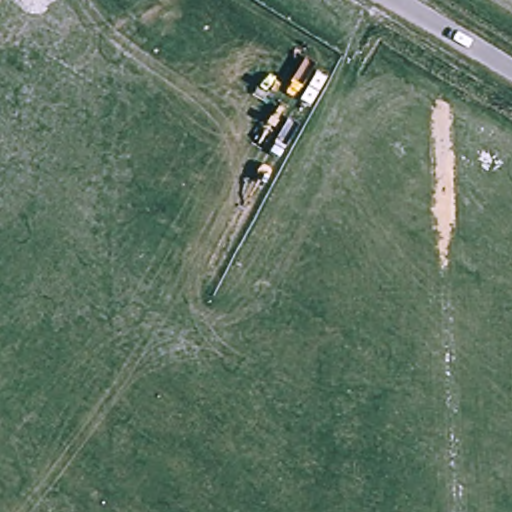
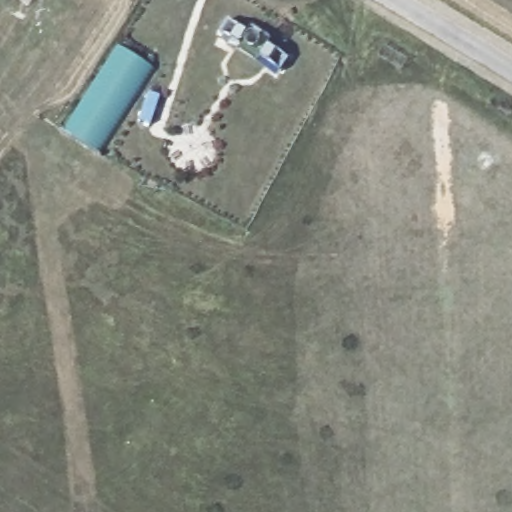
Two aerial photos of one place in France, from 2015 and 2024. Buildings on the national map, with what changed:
new [(117,47),(156,72),(101,159),(62,133),(117,47)]

